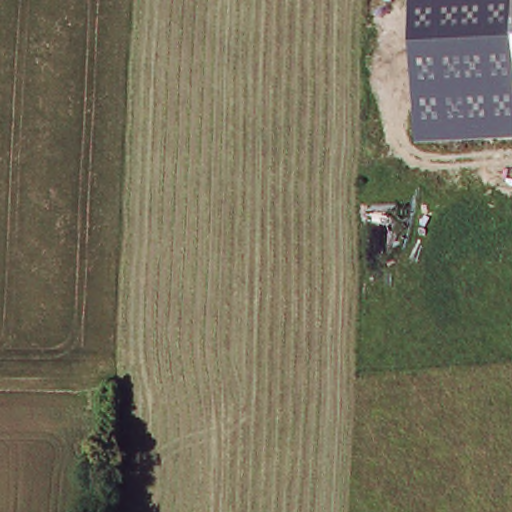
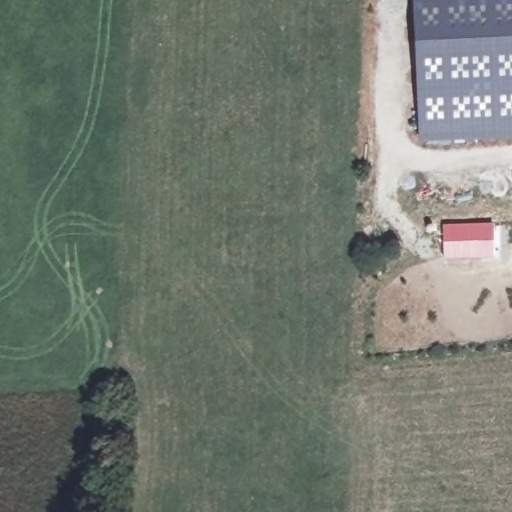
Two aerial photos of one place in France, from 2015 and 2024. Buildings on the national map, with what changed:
unchanged [(415,0),(512,0),(512,135),(421,140),(415,0)]
new [(493,221),(494,256),(443,258),(442,223),(493,221)]

